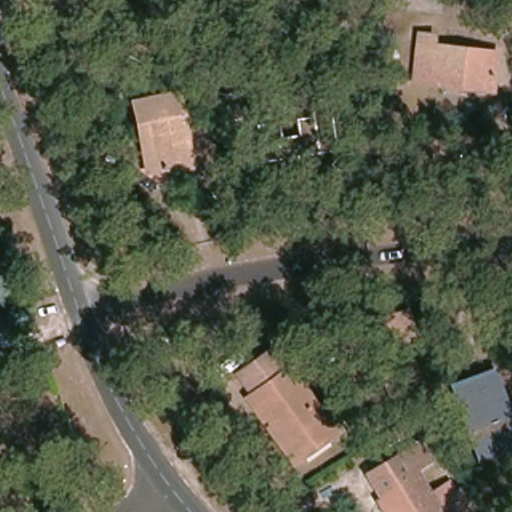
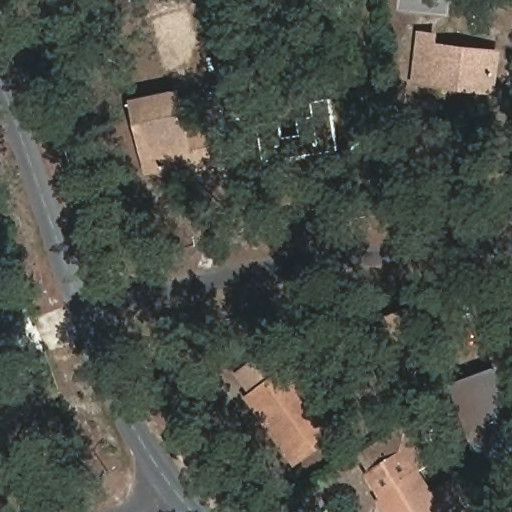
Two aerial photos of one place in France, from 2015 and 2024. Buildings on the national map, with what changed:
unchanged [(425,87),(427,38),(440,37),(440,51),(487,51),(486,87),(472,87),(447,87),(425,87)]
unchanged [(180,134),(206,134),(206,174),(173,176),(173,165),(137,166),(140,92),(181,90),(180,134)]
unchanged [(285,134),(303,134),(303,119),(318,118),(318,100),(337,100),(335,157),(265,160),(266,120),(285,119),(285,134)]
unchanged [(417,337),(400,346),(388,324),(407,314),(417,337)]
unchanged [(326,424),(290,454),(244,386),(285,357),(326,424)]
unchanged [(512,448),(485,462),(455,388),(490,370),(512,426),(512,448)]
unchanged [(385,503),(368,478),(412,444),(428,467),(413,479),(427,500),(446,486),(463,512),(381,512),(378,508),(385,503)]

